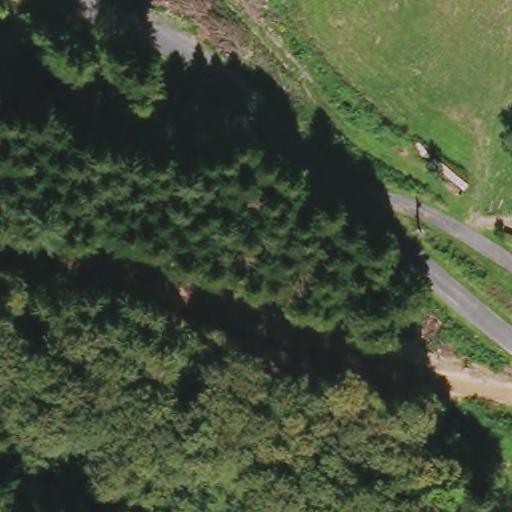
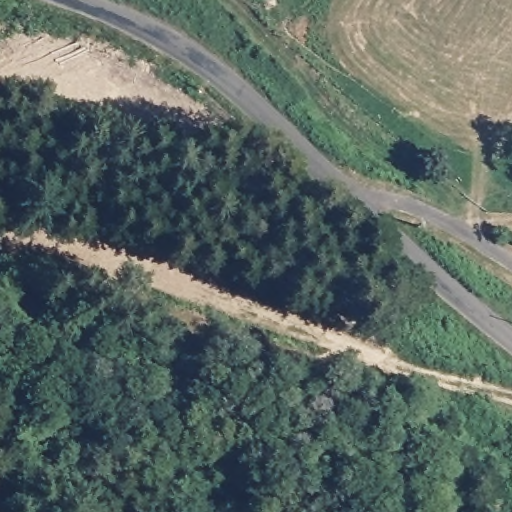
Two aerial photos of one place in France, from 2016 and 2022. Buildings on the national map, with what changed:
[]

